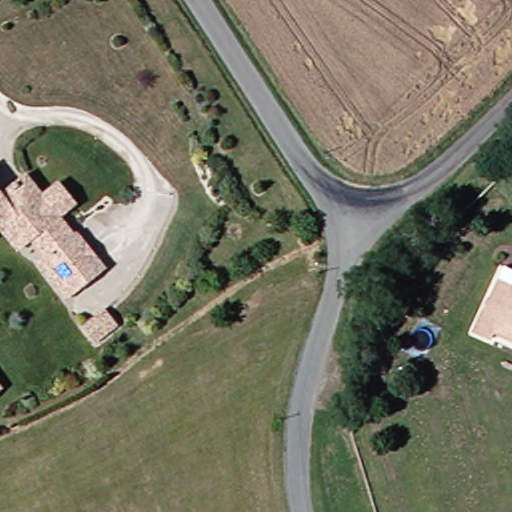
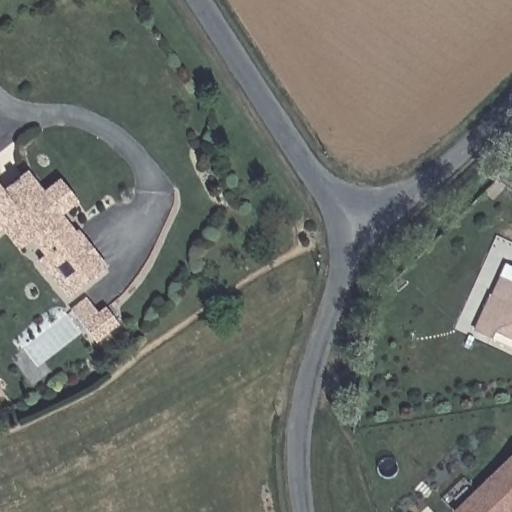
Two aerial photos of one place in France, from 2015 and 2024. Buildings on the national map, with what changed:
unchanged [(70,298),(52,276),(57,270),(32,239),(20,248),(4,228),(0,231),(0,188),(4,192),(8,187),(28,173),(45,194),(60,181),(77,202),(61,214),(76,233),(57,249),(85,285),(70,298)]
unchanged [(106,267),(85,285),(57,249),(76,233),(106,267)]
unchanged [(500,337),(484,329),(498,300),(506,281),(512,283),(512,334),(505,331),(500,337)]
unchanged [(103,353),(90,336),(114,318),(125,335),(103,353)]
new [(512,512),(453,512),(512,454),(512,512)]

